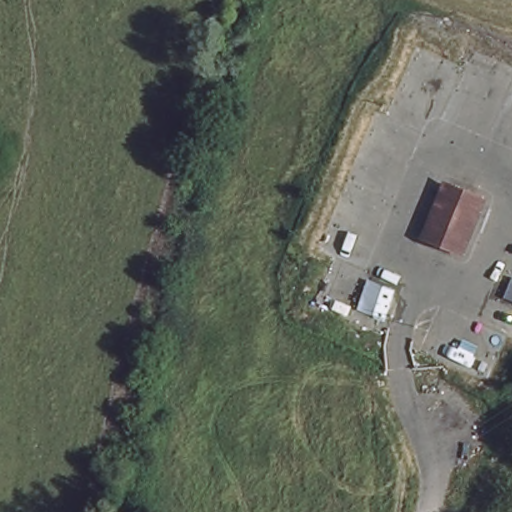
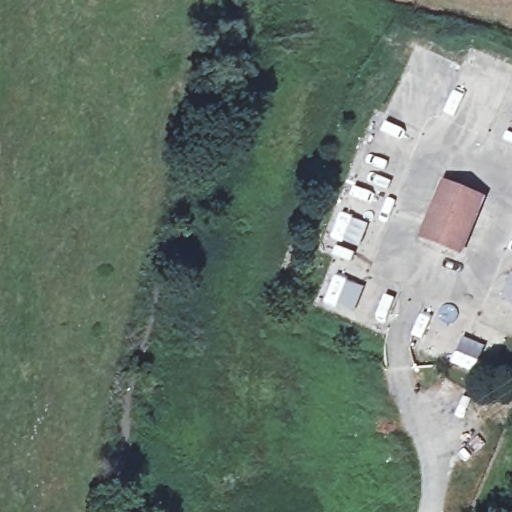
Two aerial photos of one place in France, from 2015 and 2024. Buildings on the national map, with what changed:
unchanged [(462,255),(417,239),(437,181),(480,194),(462,255)]

